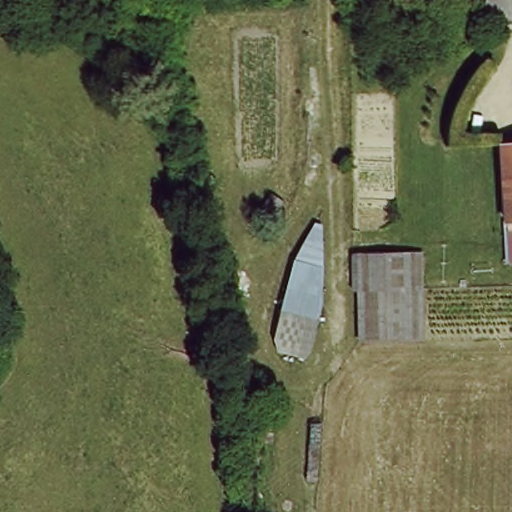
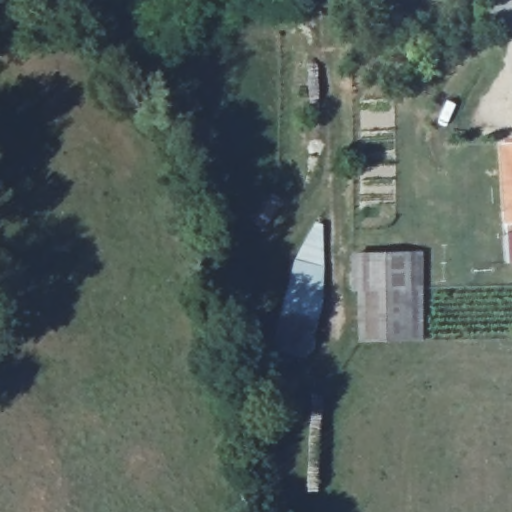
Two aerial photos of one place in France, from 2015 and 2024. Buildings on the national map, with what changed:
unchanged [(512,148),(512,224),(507,225),(501,149),(512,148)]
unchanged [(326,224),(326,278),(307,359),(278,352),(275,337),(293,260),(316,222),(326,224)]
unchanged [(422,257),(424,345),(360,348),(358,301),(351,301),(350,259),(422,257)]

